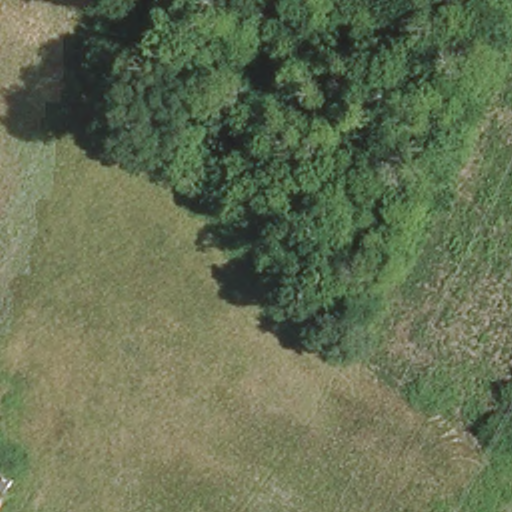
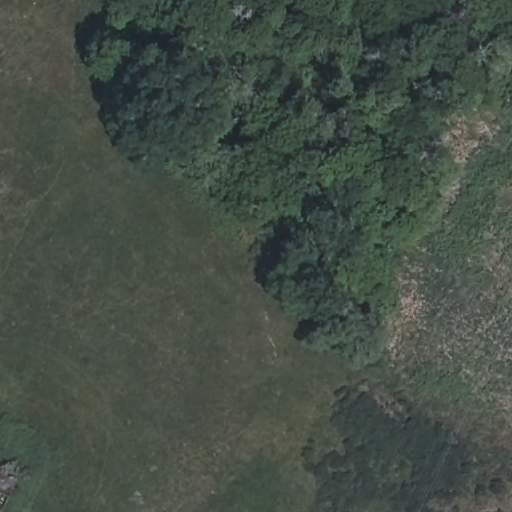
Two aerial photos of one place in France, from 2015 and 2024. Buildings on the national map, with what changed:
unchanged [(19,468),(16,476),(1,512),(0,512),(0,461),(19,468)]

